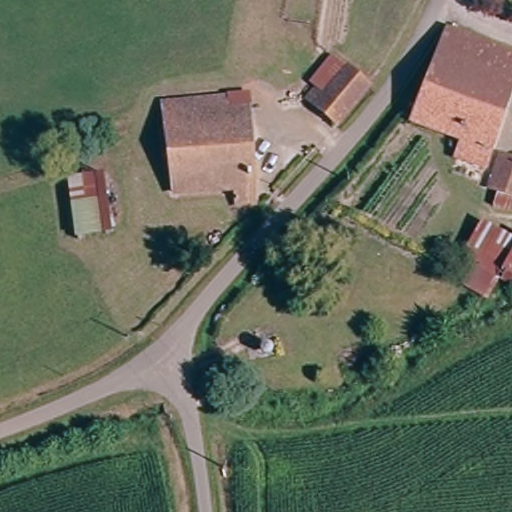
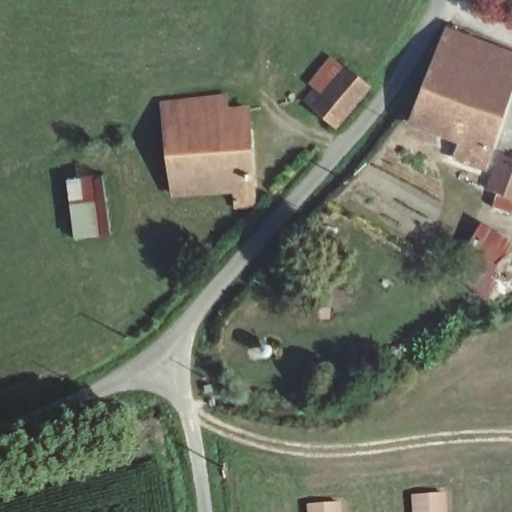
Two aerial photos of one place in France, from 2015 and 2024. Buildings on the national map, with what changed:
unchanged [(512,97),(486,169),(461,159),(467,143),(417,124),(419,118),(453,29),(512,51),(512,97)]
unchanged [(340,121),(311,98),(325,80),(333,87),(351,64),(373,82),(340,121)]
unchanged [(233,209),(232,190),(173,196),(164,104),(227,98),(250,96),(252,111),(259,188),(251,189),(253,207),(233,209)]
unchanged [(501,154),(512,157),(512,195),(489,187),(501,154)]
unchanged [(71,178),(106,173),(114,234),(80,239),(71,178)]
unchanged [(512,288),(511,289),(495,283),(488,299),(447,275),(481,217),(512,235),(512,288)]
new [(447,512),(412,512),(410,494),(445,492),(447,512)]
new [(342,512),(306,512),(305,504),(341,501),(342,512)]

